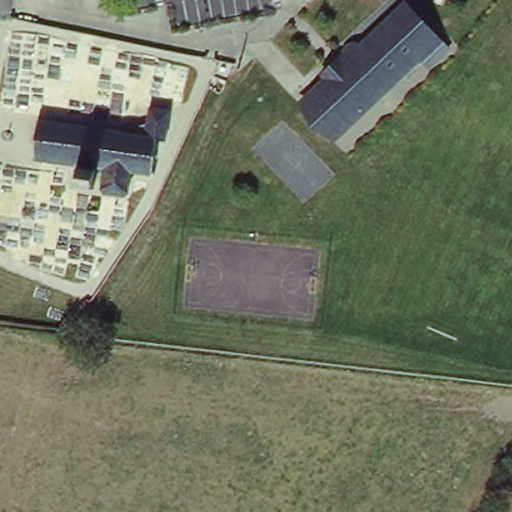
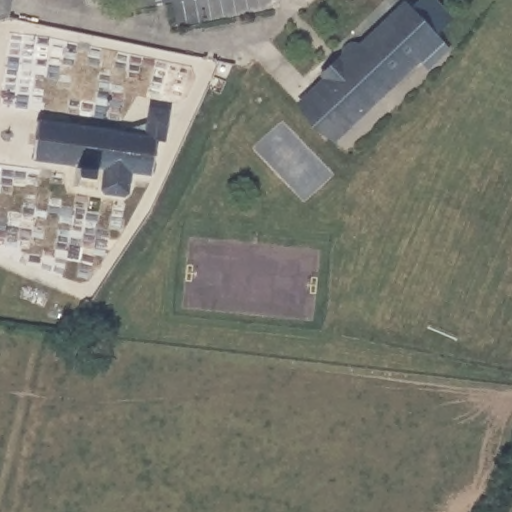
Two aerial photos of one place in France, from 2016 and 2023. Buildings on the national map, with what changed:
unchanged [(342,56),(346,62),(348,61),(346,56),(345,53),(347,50),(349,46),(351,45),(355,44),(358,44),(363,45),(408,3),(450,48),(430,68),(420,58),(350,124),(317,89),(327,79),(323,74),(342,56)]
unchanged [(350,124),(335,138),(302,103),(317,89),(350,124)]
unchanged [(34,121),(130,130),(136,121),(151,121),(153,106),(174,108),(168,141),(164,141),(159,176),(136,174),(134,195),(108,192),(111,171),(104,171),(101,188),(79,185),(81,167),(29,161),(34,121)]

